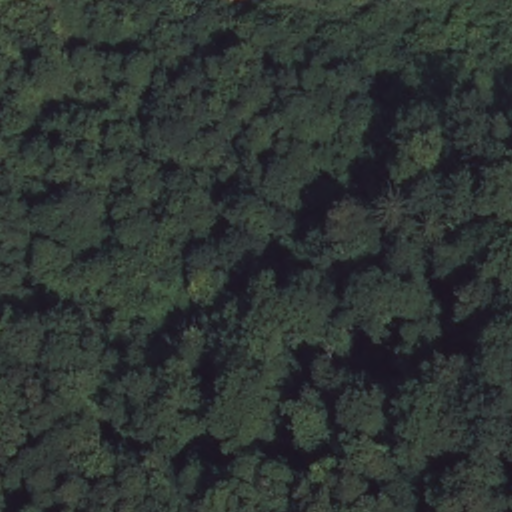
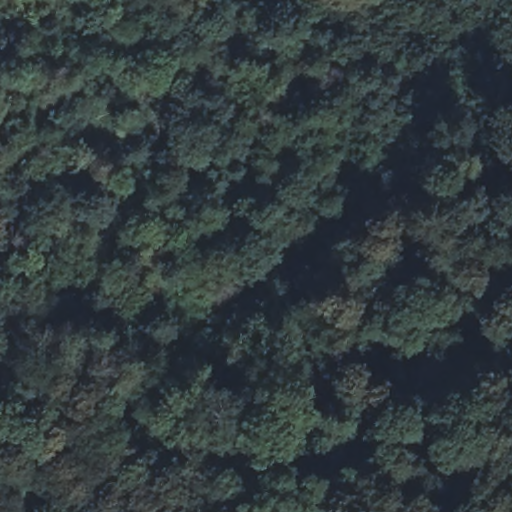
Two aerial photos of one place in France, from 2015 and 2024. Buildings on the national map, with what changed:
unchanged [(19,0),(41,0),(37,17),(16,10),(19,0)]

